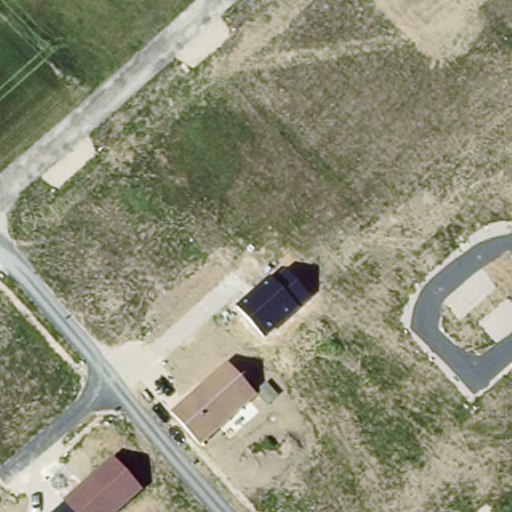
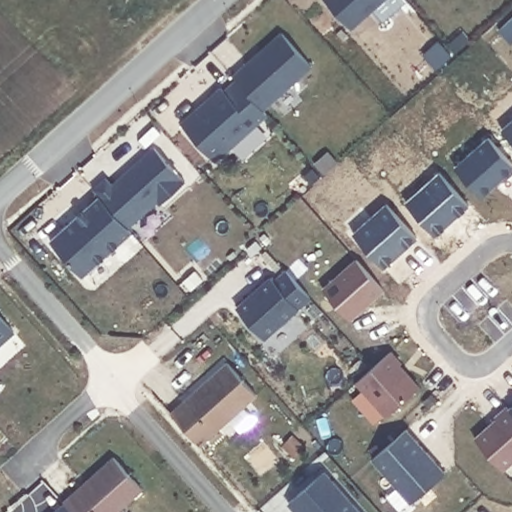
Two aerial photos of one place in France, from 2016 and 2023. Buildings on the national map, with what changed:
new [(349,28),(325,0),(381,0),(349,28)]
new [(281,33),(310,66),(261,109),(236,80),(233,77),(281,33)]
new [(220,88),(223,91),(236,80),(261,109),(266,114),(214,162),(179,124),(220,88)]
new [(512,143),(501,130),(512,121),(512,143)]
new [(512,164),(512,174),(504,181),(502,178),(485,193),(459,164),(488,138),(512,164)]
new [(105,178),(111,185),(123,174),(125,176),(131,171),(128,169),(153,147),(184,182),(158,204),(156,202),(126,228),(98,196),(92,189),(105,178)]
new [(439,173),(469,207),(436,236),(406,202),(439,173)]
new [(98,196),(126,228),(131,233),(81,277),(48,241),(98,196)]
new [(387,204),(417,237),(383,267),(353,234),(387,204)]
new [(383,290),(349,320),(322,290),(356,260),(383,290)]
unchanged [(238,306),(271,277),(275,280),(286,269),(310,295),(266,339),(238,306)]
new [(12,332),(0,343),(0,318),(12,332)]
new [(391,352),(419,387),(386,416),(356,381),(391,352)]
unchanged [(202,445),(171,413),(228,363),(257,395),(202,445)]
new [(492,416),(506,404),(509,409),(512,406),(512,462),(504,469),(476,437),(495,419),(492,416)]
new [(408,429),(444,472),(411,503),(373,458),(408,429)]
unchanged [(62,501),(113,458),(143,490),(118,512),(55,512),(64,503),(62,501)]
new [(361,512),(296,512),(289,503),(326,472),(361,512)]

